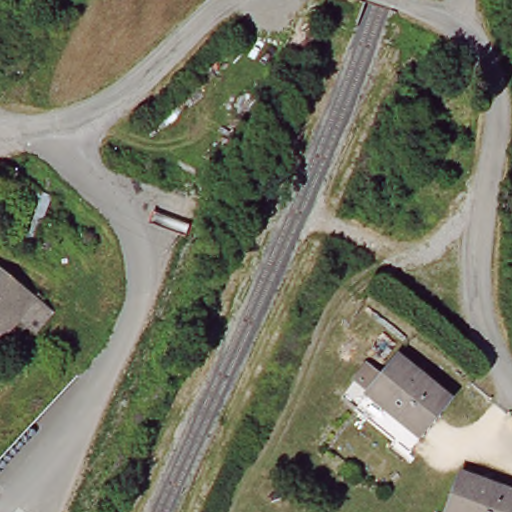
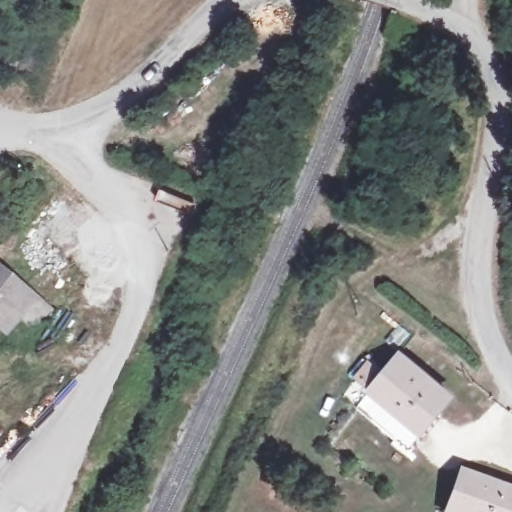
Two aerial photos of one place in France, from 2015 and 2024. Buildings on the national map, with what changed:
unchanged [(13,244),(38,181),(47,185),(22,248),(13,244)]
unchanged [(33,330),(17,320),(6,332),(0,325),(0,267),(50,302),(33,330)]
unchanged [(104,337),(82,364),(49,336),(71,309),(104,337)]
unchanged [(452,400),(441,414),(435,408),(417,429),(423,435),(410,452),(359,409),(374,390),(361,378),(374,362),(387,373),(401,356),(452,400)]
unchanged [(509,508),(507,512),(451,512),(449,511),(464,469),(512,489),(512,509),(509,508)]

